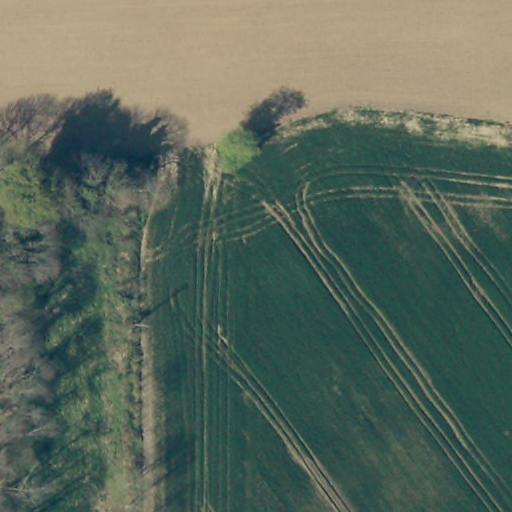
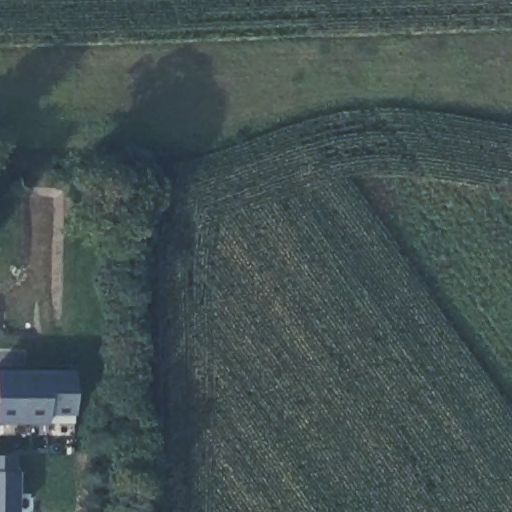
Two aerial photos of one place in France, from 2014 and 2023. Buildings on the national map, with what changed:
new [(46,417),(48,425),(0,425),(0,370),(73,370),(73,416),(46,417)]

